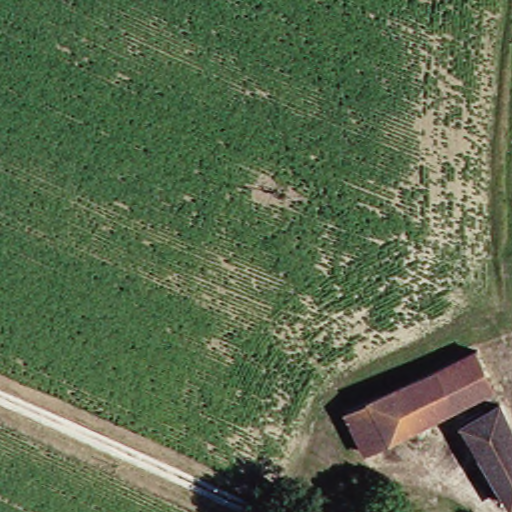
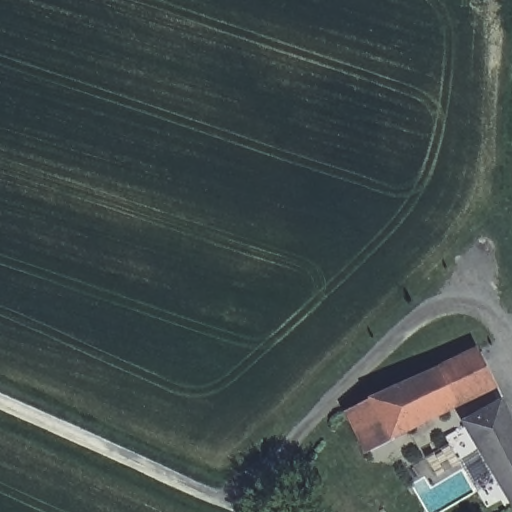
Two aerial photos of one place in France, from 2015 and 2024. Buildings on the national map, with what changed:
unchanged [(503,388),(471,402),(464,405),(443,365),(485,347),(503,388)]
unchanged [(433,420),(411,430),(394,437),(375,395),(443,365),(464,405),(433,420)]
unchanged [(394,437),(369,444),(353,405),(375,395),(394,437)]
unchanged [(512,442),(493,451),(477,418),(508,403),(512,412),(512,442)]
unchanged [(512,442),(512,491),(493,451),(512,442)]

